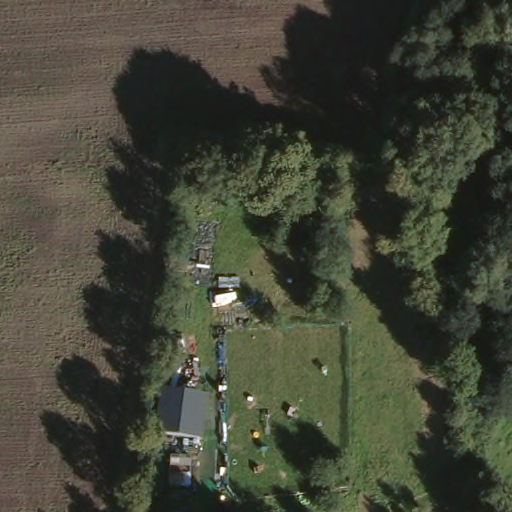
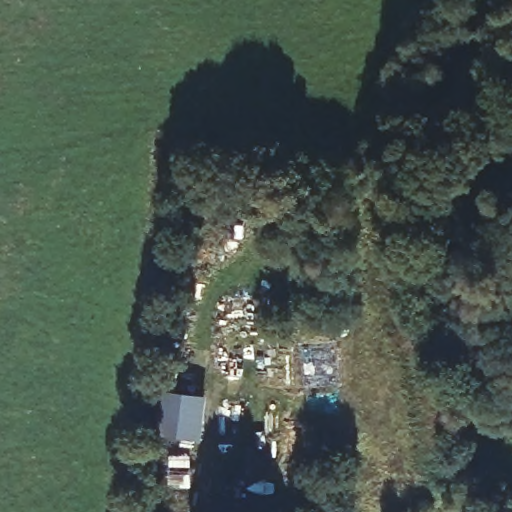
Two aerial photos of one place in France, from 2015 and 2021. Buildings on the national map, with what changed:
unchanged [(203,442),(154,435),(159,390),(208,395),(203,442)]

